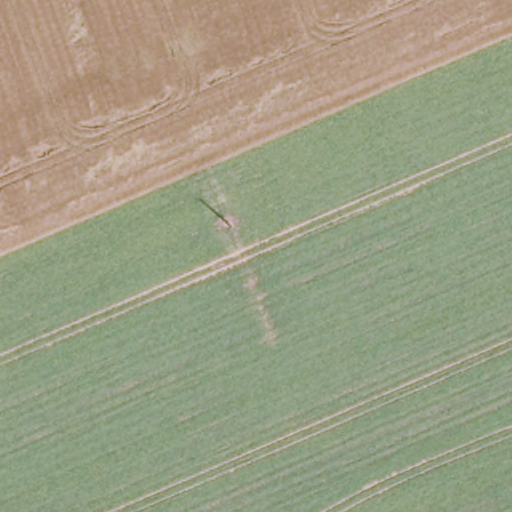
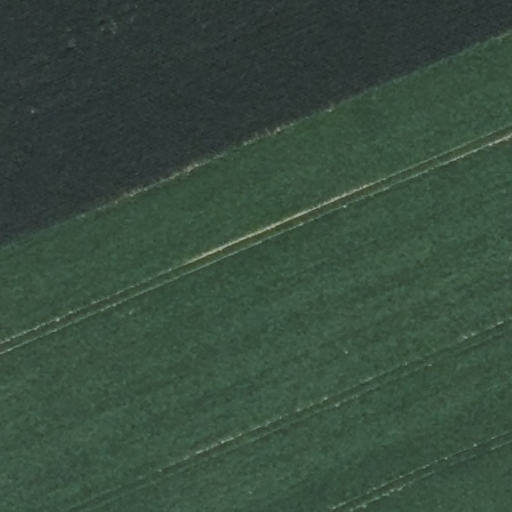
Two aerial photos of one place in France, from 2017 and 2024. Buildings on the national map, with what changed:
[]

